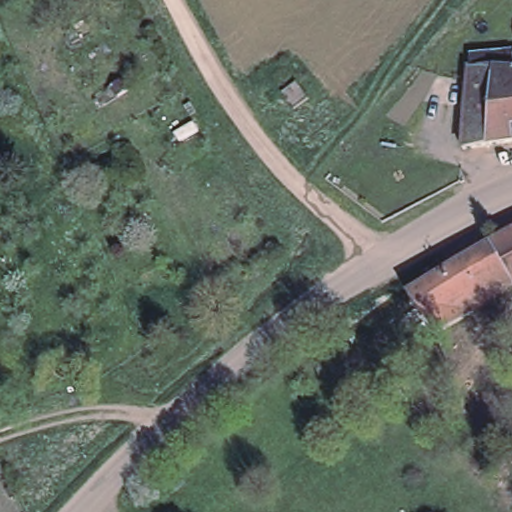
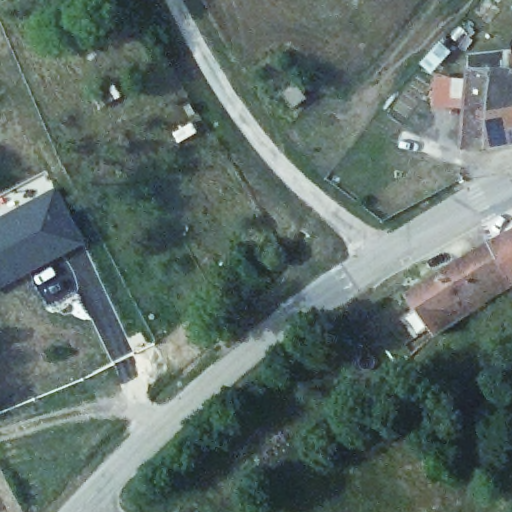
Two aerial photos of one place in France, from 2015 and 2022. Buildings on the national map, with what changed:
unchanged [(458,147),(464,66),(509,67),(512,54),(512,139),(458,147)]
new [(85,246),(0,288),(0,216),(58,187),(85,246)]
unchanged [(493,236),(510,226),(512,225),(512,278),(484,295),(459,256),(478,245),(493,236)]
unchanged [(437,328),(409,290),(425,279),(459,256),(484,295),(486,297),(454,317),(437,328)]

